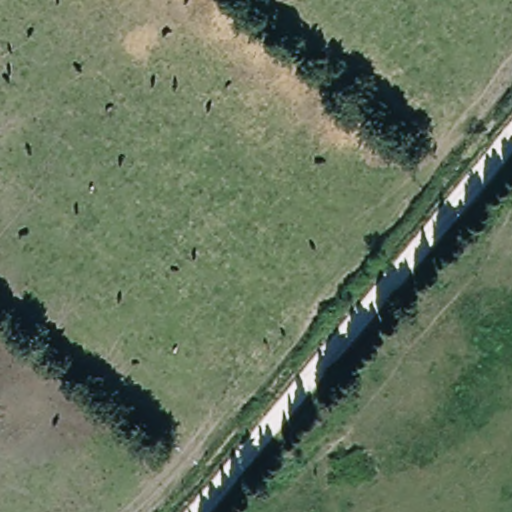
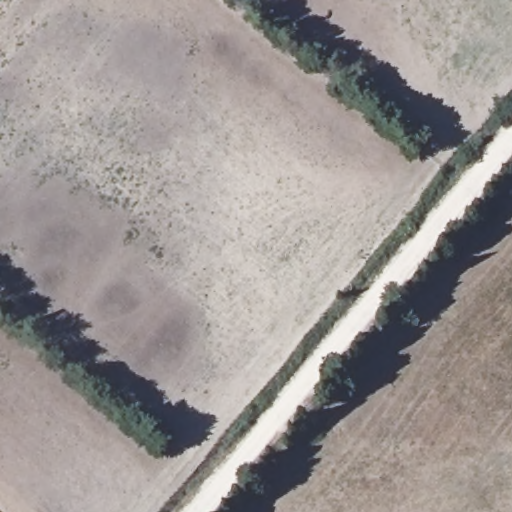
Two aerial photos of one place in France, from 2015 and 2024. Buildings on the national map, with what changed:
[]

